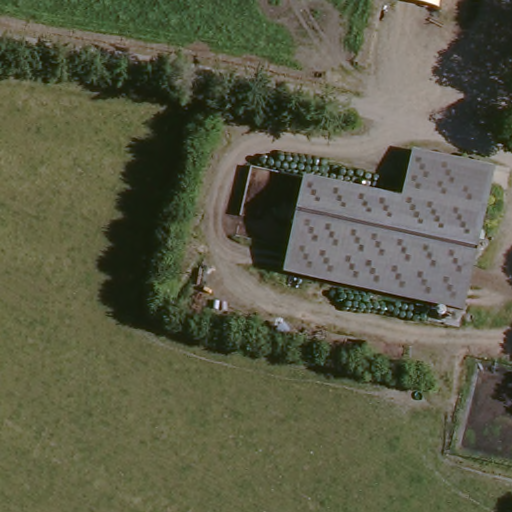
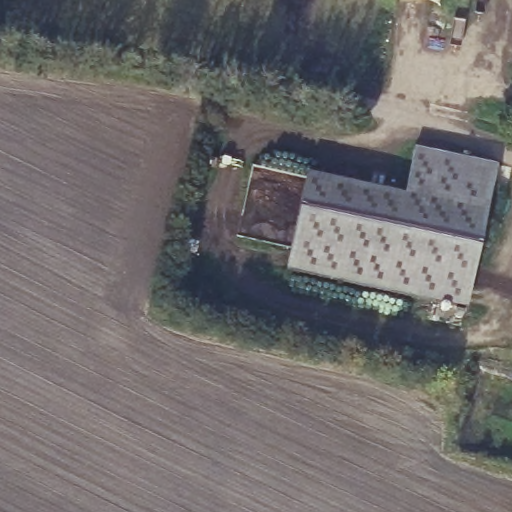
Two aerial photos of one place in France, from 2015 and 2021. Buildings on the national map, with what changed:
unchanged [(413,0),(437,0),(436,5),(413,0)]
unchanged [(286,280),(307,182),(405,202),(415,156),(492,175),(462,316),(286,280)]

